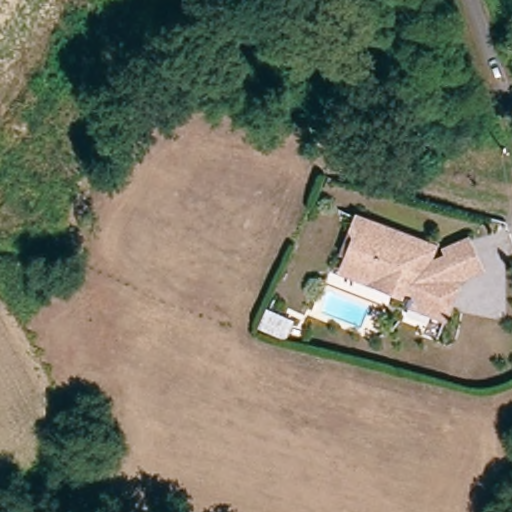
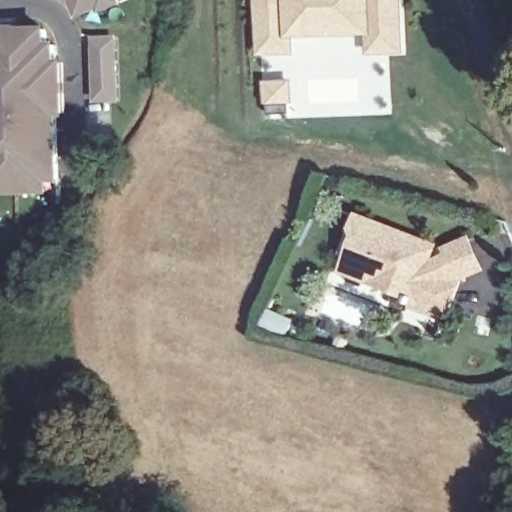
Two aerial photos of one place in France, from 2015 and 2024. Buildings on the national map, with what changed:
new [(127,2),(102,14),(100,10),(80,19),(72,0),(126,0),(127,2)]
new [(405,53),(367,54),(367,35),(296,39),(296,55),(261,56),(257,0),(402,0),(405,53)]
new [(48,26),(49,41),(59,41),(60,58),(67,57),(67,115),(62,115),(64,182),(51,182),(50,195),(0,195),(0,26),(48,26)]
new [(292,79),(293,104),(267,104),(266,80),(292,79)]
unchanged [(434,311),(398,298),(401,292),(363,278),(368,261),(347,254),(342,251),(355,215),(421,240),(423,245),(416,264),(446,276),(434,311)]
unchanged [(454,233),(466,262),(446,276),(416,264),(423,245),(454,233)]

